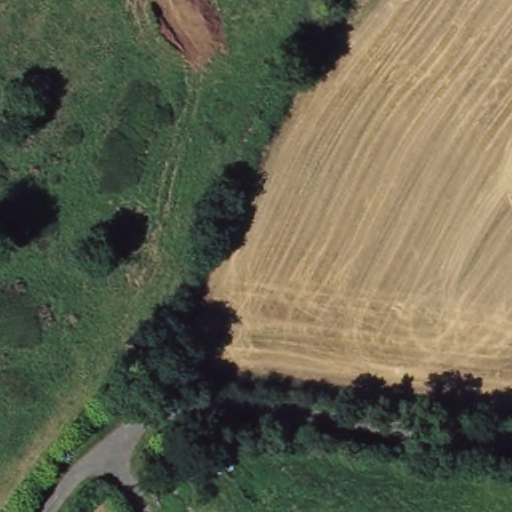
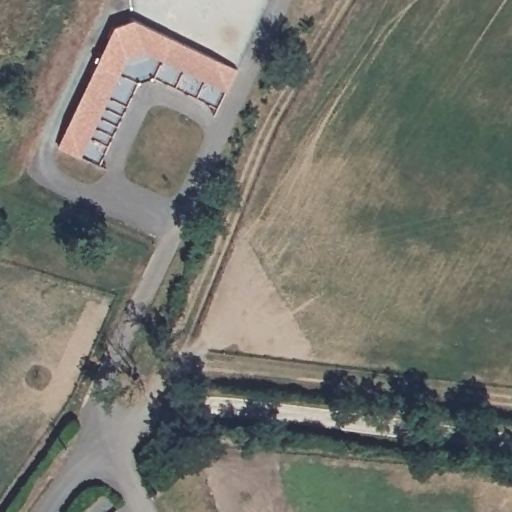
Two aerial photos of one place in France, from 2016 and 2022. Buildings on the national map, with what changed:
new [(58,149),(68,126),(116,27),(136,19),(217,59),(237,70),(228,91),(145,53),(128,58),(81,160),(58,149)]
unchanged [(216,443),(220,469),(191,474),(184,448),(216,443)]

